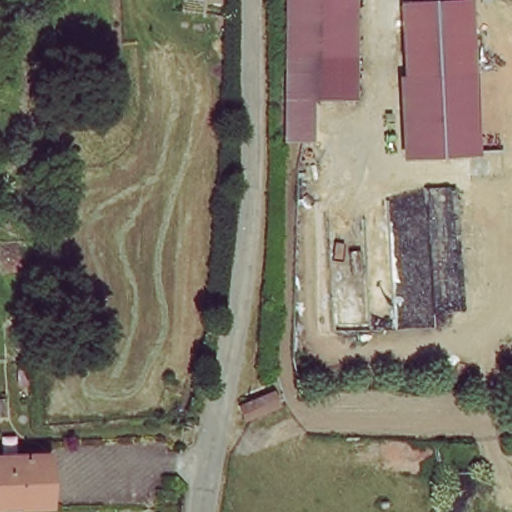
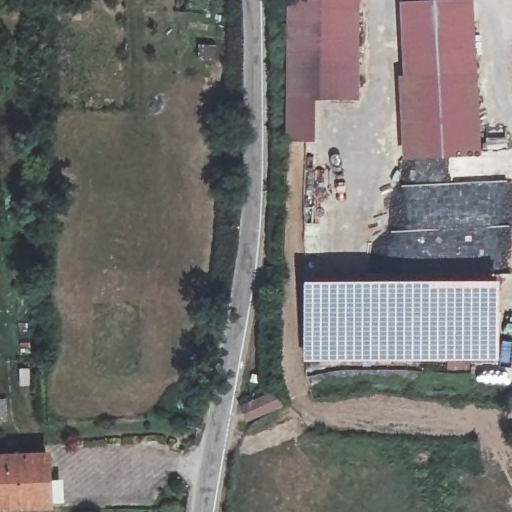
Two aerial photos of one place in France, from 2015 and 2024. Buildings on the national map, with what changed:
unchanged [(310,98),(308,135),(283,134),(284,0),(352,0),(352,98),(310,98)]
unchanged [(401,153),(398,70),(404,69),(401,0),(474,0),(480,150),(401,153)]
new [(303,280),(498,279),(498,360),(303,360),(303,280)]
unchanged [(281,397),(250,411),(245,399),(276,387),(283,390),(281,397)]
unchanged [(51,503),(0,506),(0,453),(48,451),(51,503)]

